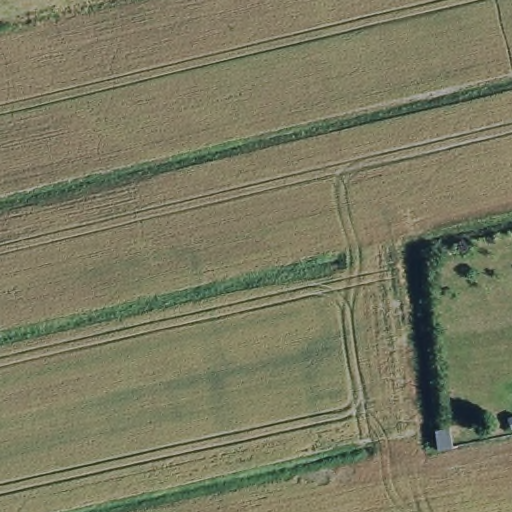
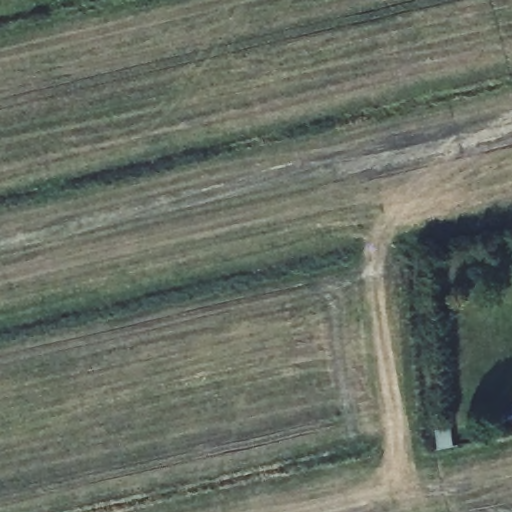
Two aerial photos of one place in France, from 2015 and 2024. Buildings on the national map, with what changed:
[]

